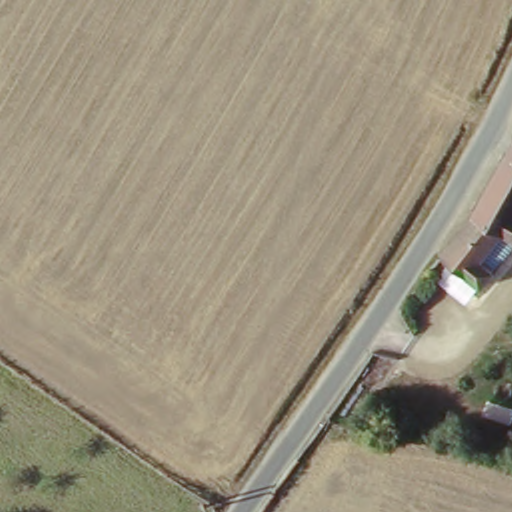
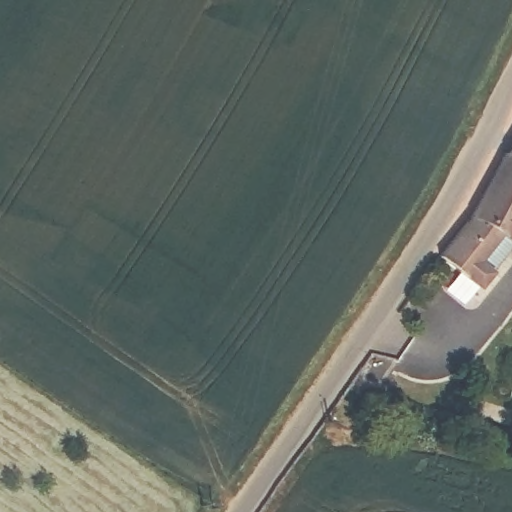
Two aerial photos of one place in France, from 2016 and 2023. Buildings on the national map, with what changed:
unchanged [(512,142),(512,150),(508,149),(512,142)]
unchanged [(512,240),(500,232),(471,215),(508,149),(512,150),(512,240)]
unchanged [(500,232),(478,260),(492,271),(480,286),(442,255),(471,215),(500,232)]

